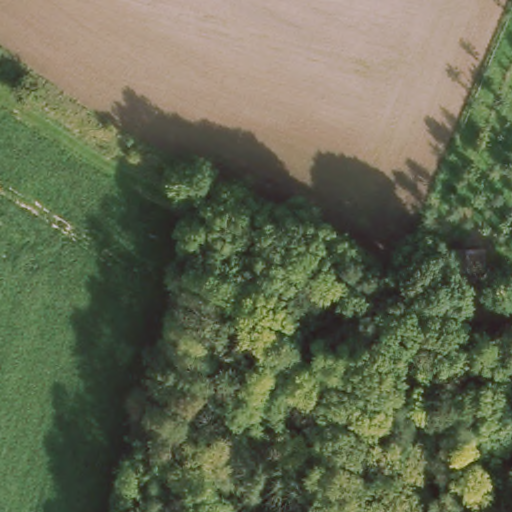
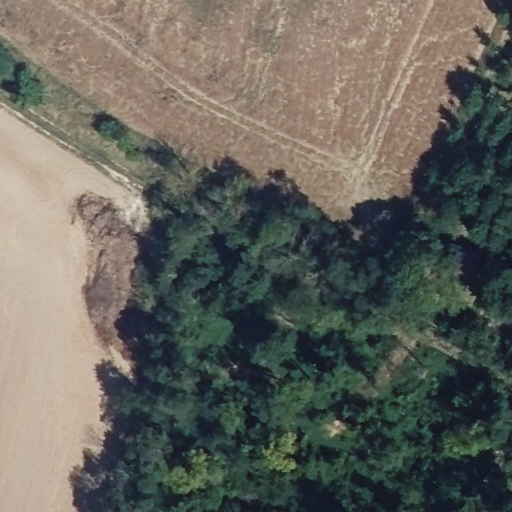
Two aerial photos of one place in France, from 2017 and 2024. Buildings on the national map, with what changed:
unchanged [(470,247),(471,271),(451,271),(450,248),(470,247)]

